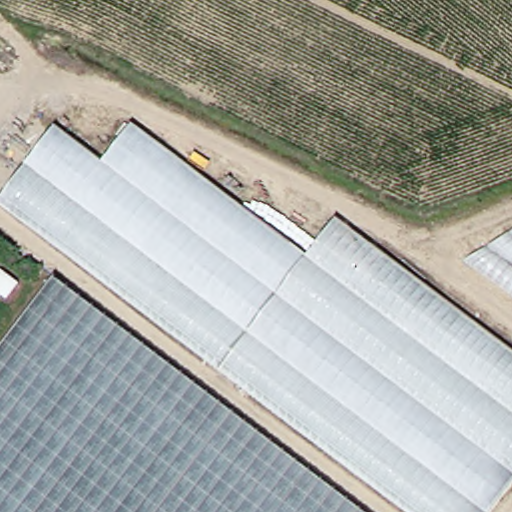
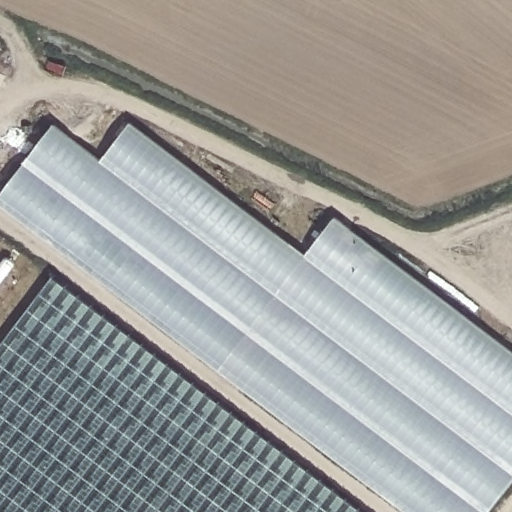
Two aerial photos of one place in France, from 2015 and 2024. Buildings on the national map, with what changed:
unchanged [(105,156),(132,121),(306,251),(337,215),(512,346),(512,482),(490,512),(414,512),(0,195),(0,193),(57,121),(105,156)]
demolished [(512,287),(466,252),(512,225),(512,287)]
unchanged [(55,276),(365,512),(0,512),(0,346),(55,276)]

